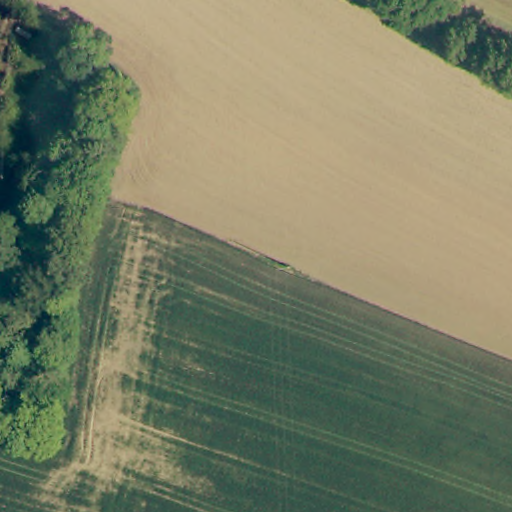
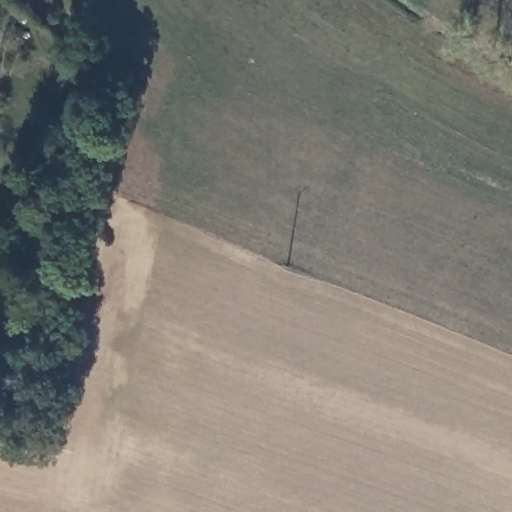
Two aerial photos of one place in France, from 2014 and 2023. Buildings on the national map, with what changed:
unchanged [(69,108),(95,115),(91,131),(64,124),(69,108)]

